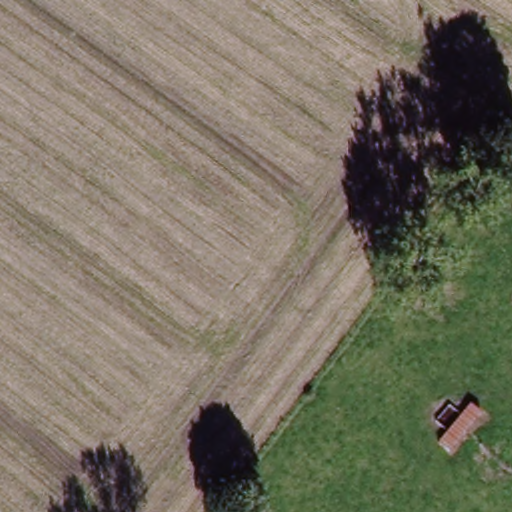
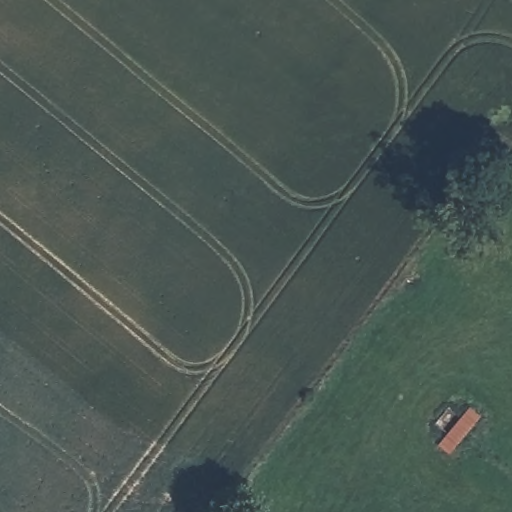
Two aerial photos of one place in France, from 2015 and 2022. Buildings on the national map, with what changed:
unchanged [(450,454),(440,443),(470,407),(482,416),(450,454)]

